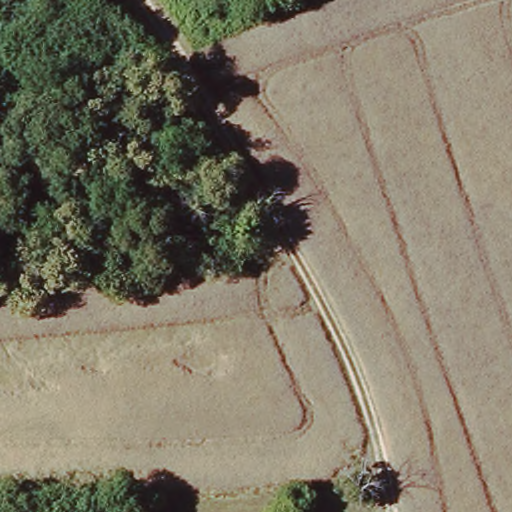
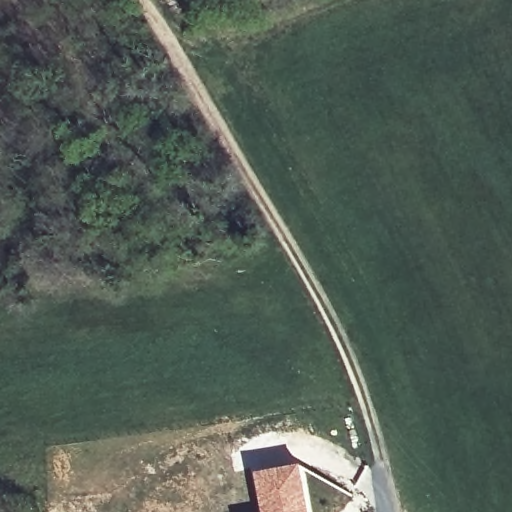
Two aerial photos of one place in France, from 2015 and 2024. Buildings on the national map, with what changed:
new [(263,512),(257,474),(300,465),(308,512),(263,512)]

